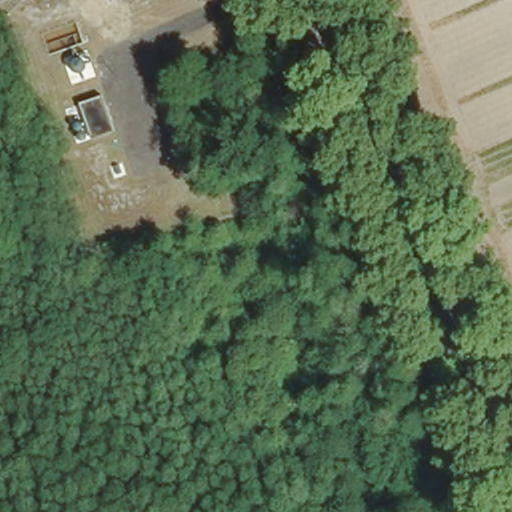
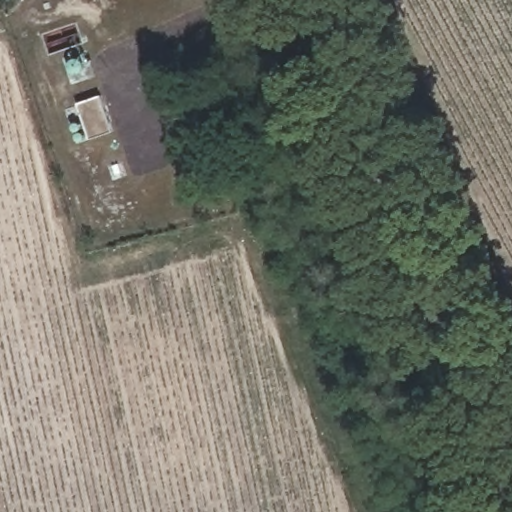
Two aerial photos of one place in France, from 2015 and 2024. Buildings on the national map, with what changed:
unchanged [(100,86),(115,121),(94,130),(80,94),(100,86)]
unchanged [(79,124),(77,123),(76,121),(76,118),(76,116),(78,115),(80,115),(81,115),(83,116),(84,117),(84,119),(84,120),(84,121),(83,123),(82,123),(81,124),(79,124)]
unchanged [(81,128),(81,126),(81,125),(83,124),(84,124),(85,124),(86,125),(87,125),(88,126),(89,127),(89,128),(89,129),(89,130),(89,131),(88,132),(87,133),(86,133),(85,133),(84,133),(83,133),(82,132),(81,131),(81,129),(81,128)]

